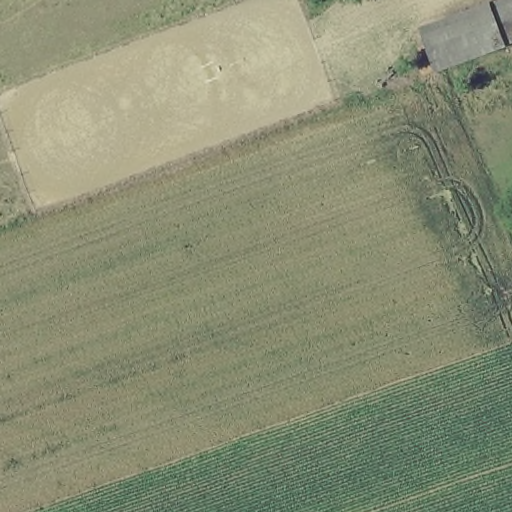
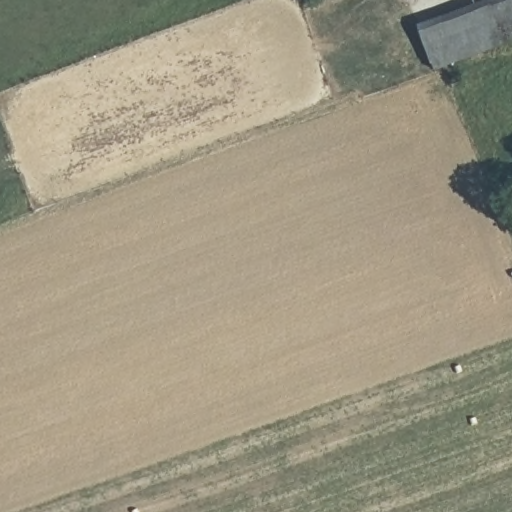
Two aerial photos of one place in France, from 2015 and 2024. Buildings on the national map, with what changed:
unchanged [(420,27),(492,0),(512,0),(512,46),(437,73),(420,27)]

